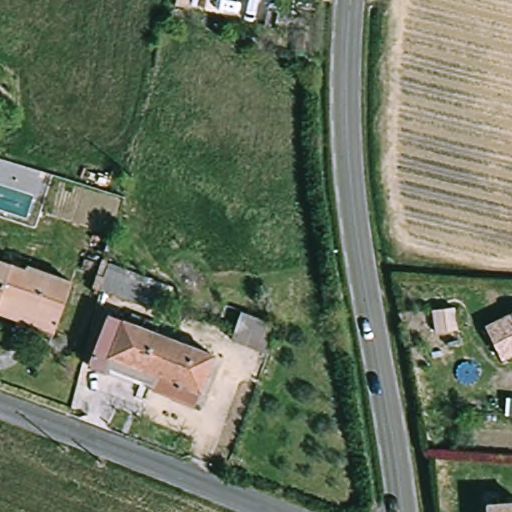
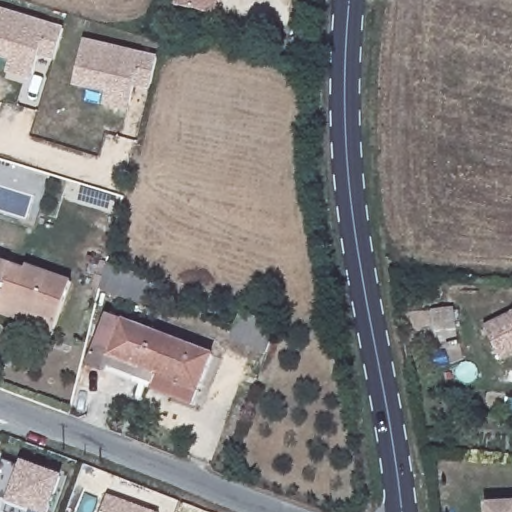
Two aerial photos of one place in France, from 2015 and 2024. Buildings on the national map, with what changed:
unchanged [(174,5),(175,0),(188,0),(186,8),(174,5)]
unchanged [(199,0),(221,0),(218,12),(197,9),(199,0)]
new [(0,55),(0,8),(60,26),(52,57),(37,52),(33,64),(30,76),(5,69),(8,57),(0,55)]
new [(72,78),(83,36),(156,53),(148,84),(133,80),(130,93),(127,104),(102,99),(105,86),(72,78)]
unchanged [(104,281),(107,267),(108,263),(135,273),(134,274),(139,276),(137,280),(170,292),(160,313),(102,291),(104,281)]
unchanged [(0,310),(0,264),(20,270),(22,265),(70,279),(57,318),(55,326),(0,310)]
unchanged [(452,304),(455,326),(433,329),(430,307),(452,304)]
unchanged [(277,325),(266,354),(228,340),(239,311),(277,325)]
unchanged [(487,328),(512,316),(512,356),(502,360),(487,328)]
unchanged [(143,389),(147,382),(125,374),(123,382),(93,370),(97,362),(113,318),(202,352),(188,388),(181,404),(143,389)]
new [(27,512),(0,502),(0,481),(6,465),(25,472),(26,469),(63,483),(53,512),(27,512)]
unchanged [(512,500),(512,512),(481,512),(480,504),(512,500)]
new [(134,512),(108,512),(111,503),(134,512)]

